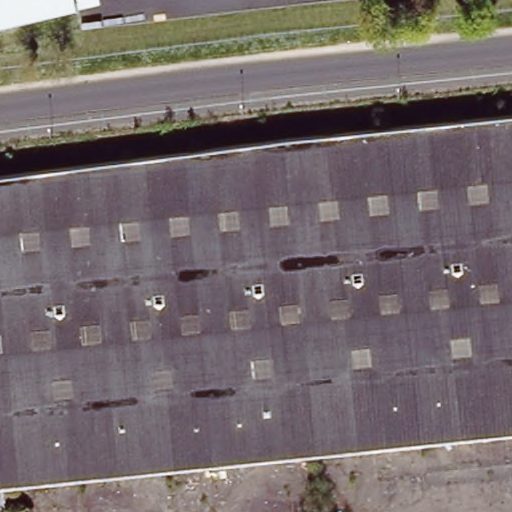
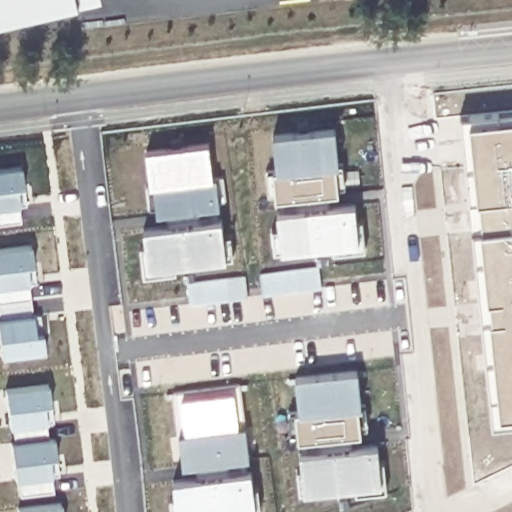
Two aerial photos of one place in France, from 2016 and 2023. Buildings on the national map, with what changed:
unchanged [(79,6),(0,25),(0,0),(101,0),(102,1),(79,6)]
demolished [(310,151),(512,129),(512,431),(0,484),(0,191),(310,151)]

